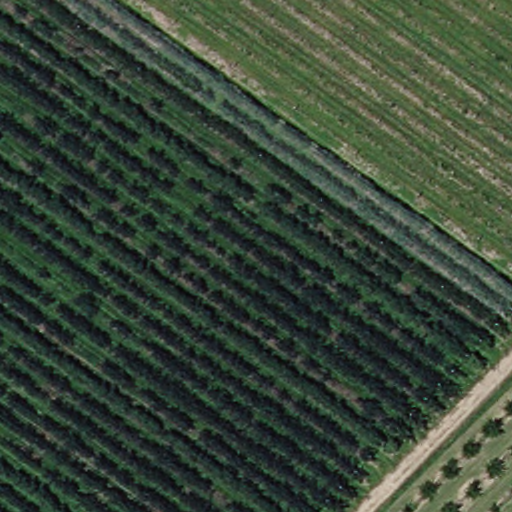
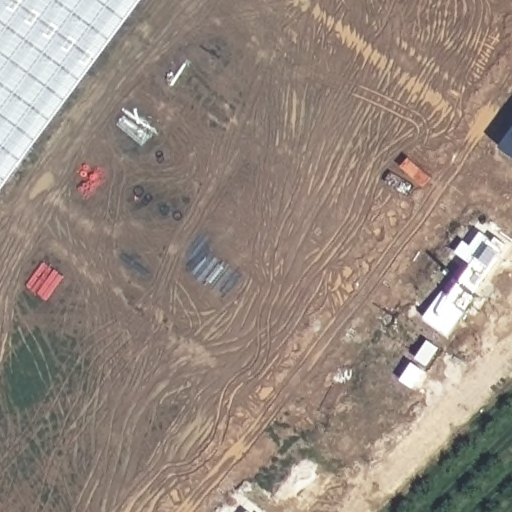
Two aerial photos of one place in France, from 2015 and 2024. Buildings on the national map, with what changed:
new [(0,186),(0,0),(138,0),(0,186)]
new [(499,145),(512,128),(512,155),(499,145)]

